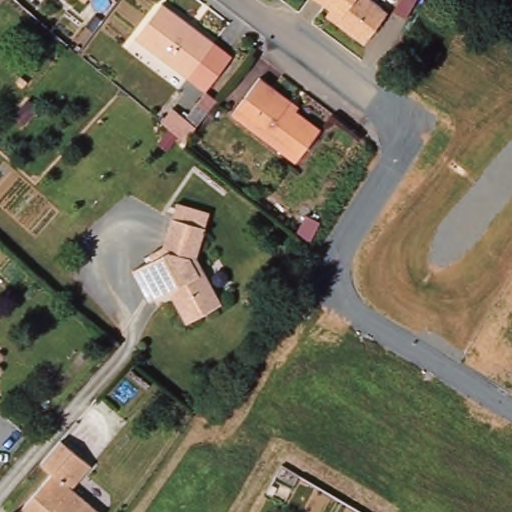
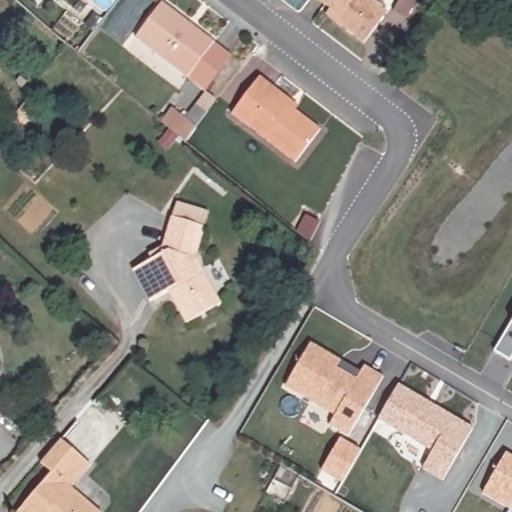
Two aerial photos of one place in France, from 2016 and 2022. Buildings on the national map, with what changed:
unchanged [(84,2),(81,0),(86,0),(84,2)]
unchanged [(331,10),(318,0),(371,0),(388,13),(364,44),(335,22),(326,15),(331,10)]
unchanged [(214,43),(188,78),(135,38),(162,3),(214,43)]
new [(233,56),(205,92),(188,78),(214,43),(233,56)]
unchanged [(296,163),(232,114),(260,77),(291,101),(299,107),(296,111),(321,130),(296,163)]
new [(185,142),(172,131),(162,123),(172,111),(185,120),(197,103),(205,92),(216,101),(208,111),(195,128),(185,142)]
demolished [(195,128),(185,142),(172,131),(162,123),(172,111),(185,120),(197,103),(208,111),(195,128)]
unchanged [(309,243),(297,233),(306,215),(320,222),(309,243)]
unchanged [(134,272),(154,262),(151,257),(165,249),(174,219),(207,228),(197,260),(192,263),(197,271),(202,269),(223,306),(188,325),(174,301),(179,299),(175,291),(151,304),(134,272)]
new [(512,320),(512,357),(510,361),(494,351),(512,320)]
new [(341,361),(361,373),(365,366),(384,377),(349,437),(330,425),(335,416),(286,387),(311,344),(341,361)]
new [(398,386),(473,429),(442,482),(422,470),(432,453),(378,421),(398,386)]
unchanged [(75,492),(97,512),(25,512),(56,477),(44,467),(65,444),(94,470),(75,492)]
new [(512,457),(512,505),(511,505),(509,509),(482,493),(505,453),(512,457)]

